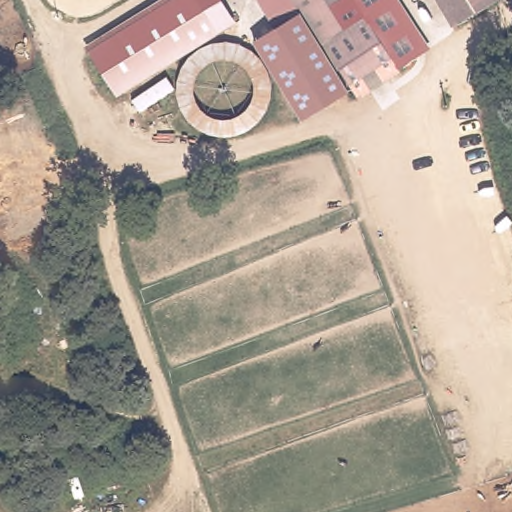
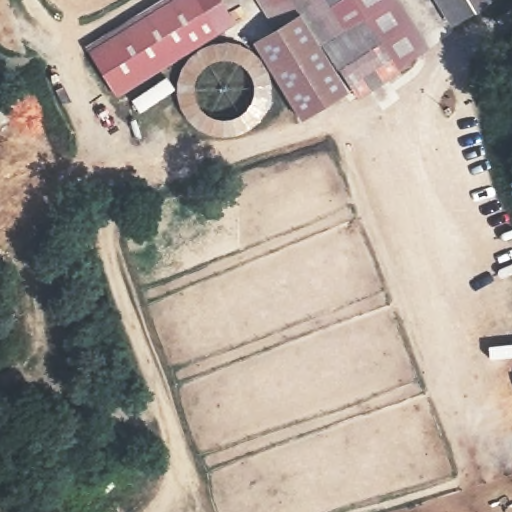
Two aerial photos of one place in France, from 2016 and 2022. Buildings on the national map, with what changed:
unchanged [(116,96),(85,45),(156,0),(199,0),(220,31),(116,96)]
unchanged [(323,45),(320,41),(304,13),(296,0),(381,0),(384,5),(378,8),(413,65),(359,98),(323,45)]
unchanged [(436,0),(495,0),(452,26),(436,0)]
unchanged [(323,45),(319,47),(348,92),(304,121),(255,40),(304,13),(323,45)]
unchanged [(228,41),(239,43),(251,49),(259,58),(268,73),(271,83),(272,95),(266,114),(257,125),(234,136),(221,138),(207,135),(194,129),(187,120),(181,108),(178,93),(179,80),(182,67),(189,59),(200,50),(213,44),(228,41)]

